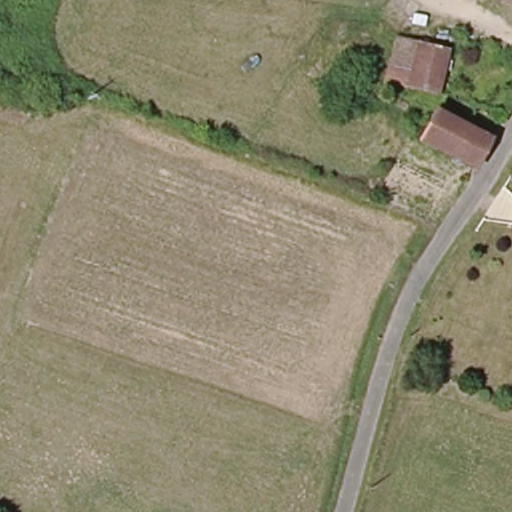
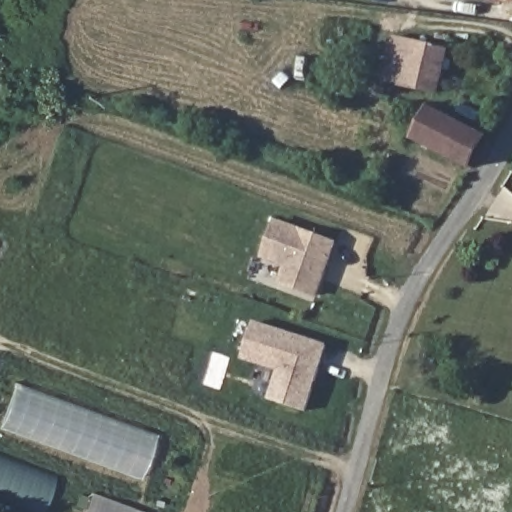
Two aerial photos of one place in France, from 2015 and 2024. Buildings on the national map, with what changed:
unchanged [(442,93),(388,79),(399,36),(453,50),(442,93)]
unchanged [(471,166),(418,140),(433,110),(487,136),(471,166)]
new [(260,259),(276,218),(339,242),(317,299),(277,284),(283,267),(260,259)]
new [(242,360),(254,321),(329,345),(306,412),(268,399),(277,372),(242,360)]
new [(156,434),(139,479),(0,429),(0,418),(13,382),(156,434)]
new [(0,502),(0,455),(56,476),(43,512),(28,512),(0,502)]
new [(90,492),(146,512),(145,512),(82,512),(90,492)]

